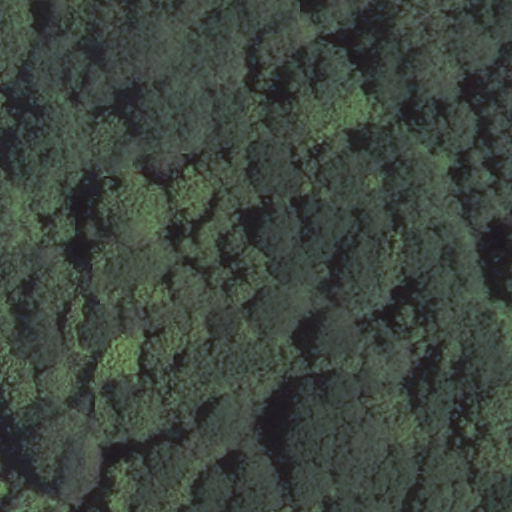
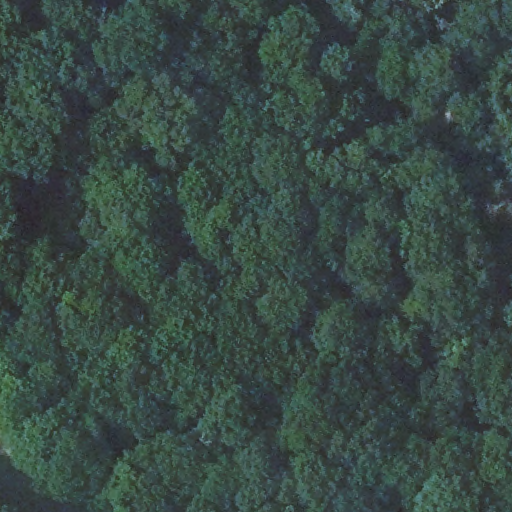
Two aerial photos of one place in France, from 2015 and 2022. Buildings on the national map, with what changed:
[]

